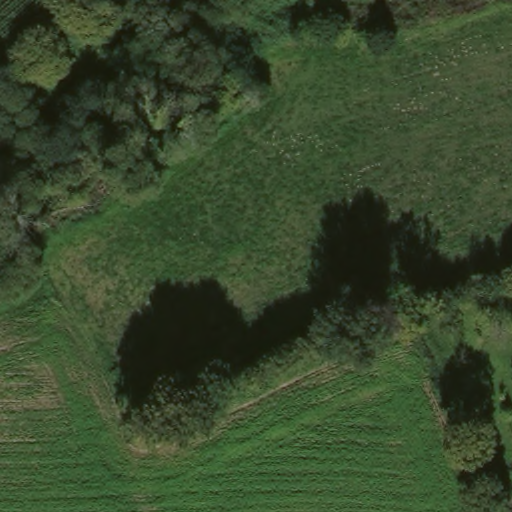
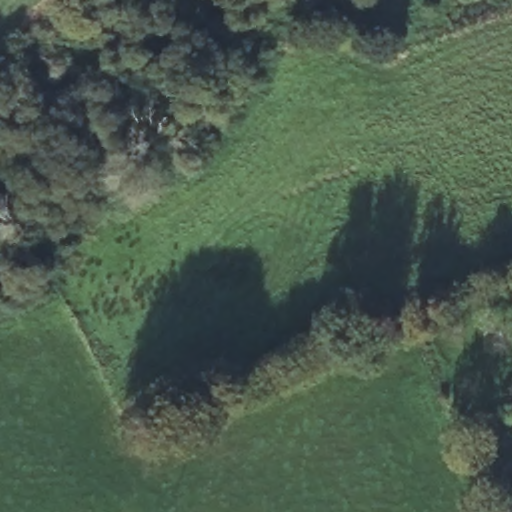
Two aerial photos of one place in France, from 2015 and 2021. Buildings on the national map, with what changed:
[]

